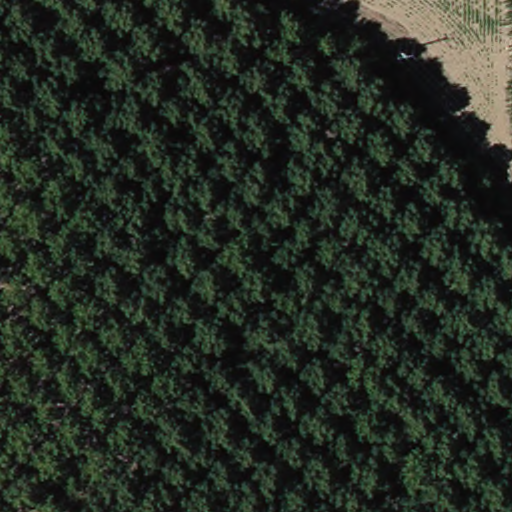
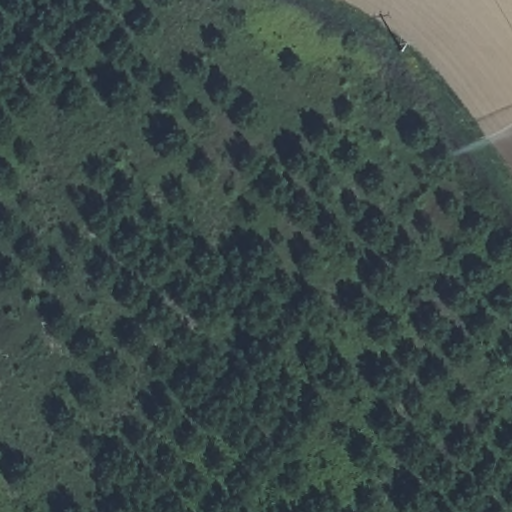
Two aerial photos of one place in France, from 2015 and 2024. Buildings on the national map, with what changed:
[]

